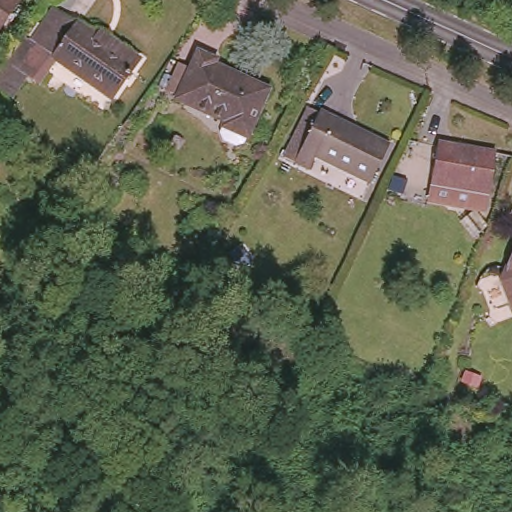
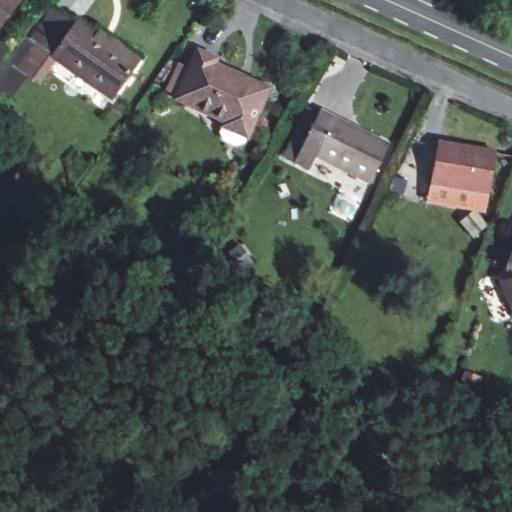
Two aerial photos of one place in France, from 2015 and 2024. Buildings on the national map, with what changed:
unchanged [(15,0),(0,24),(0,0),(15,0)]
unchanged [(107,41),(110,35),(139,53),(115,90),(61,58),(44,87),(24,73),(40,45),(28,37),(49,6),(64,16),(66,14),(107,41)]
unchanged [(214,56),(211,71),(263,88),(249,131),(248,131),(248,135),(241,138),(230,134),(226,128),(230,116),(183,98),(201,50),(214,56)]
unchanged [(321,111),(391,141),(374,179),(318,153),(309,169),(296,163),(321,111)]
unchanged [(494,148),(487,189),(429,179),(436,145),(456,148),(457,142),(494,148)]
unchanged [(512,244),(512,305),(499,282),(512,244)]

